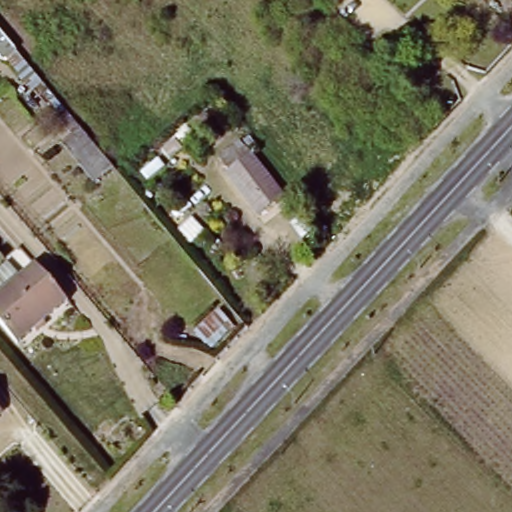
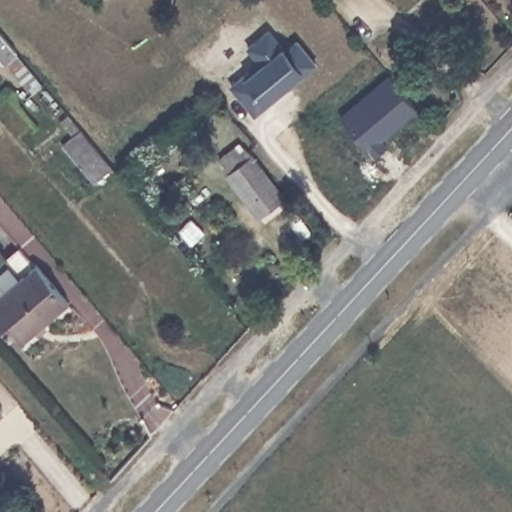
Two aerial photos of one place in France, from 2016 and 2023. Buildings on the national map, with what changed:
new [(302,74),(285,86),(287,88),(253,116),(228,84),(256,61),(245,47),(267,28),(285,46),(295,37),(315,64),(302,74)]
unchanged [(0,77),(0,36),(23,66),(0,77)]
new [(389,77),(418,111),(382,142),(387,149),(375,159),(340,118),(389,77)]
unchanged [(110,167),(93,182),(63,144),(71,136),(59,121),(66,114),(79,129),(110,167)]
unchanged [(246,154),(285,202),(253,222),(210,165),(229,145),(232,141),(236,145),(246,154)]
unchanged [(0,281),(6,275),(18,288),(35,273),(66,310),(17,352),(0,332),(0,281)]

